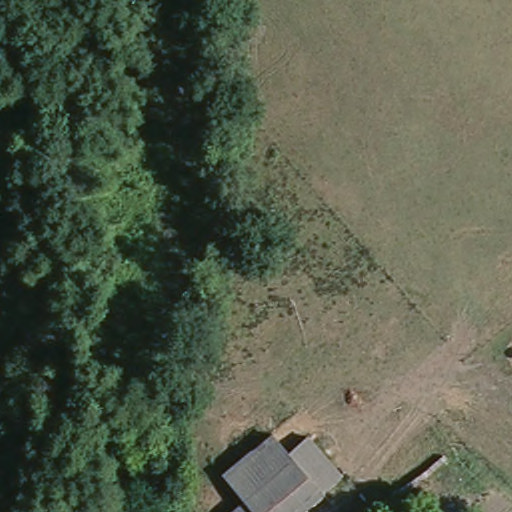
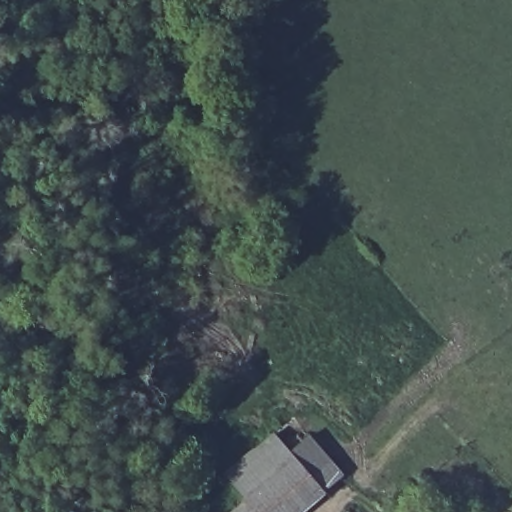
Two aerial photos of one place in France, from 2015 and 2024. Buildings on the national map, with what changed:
unchanged [(286,512),(221,512),(226,508),(197,475),(245,434),(269,462),(284,448),(317,485),(286,512)]

